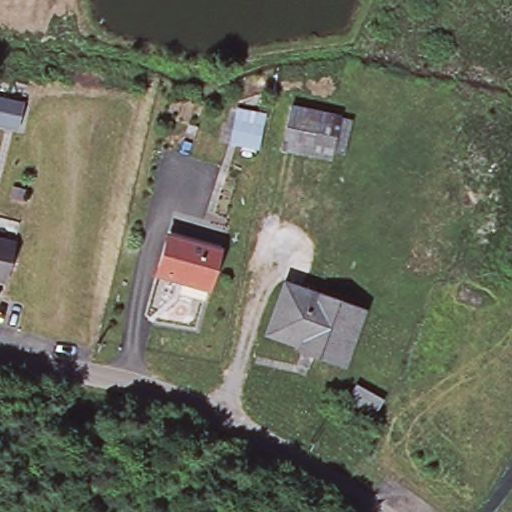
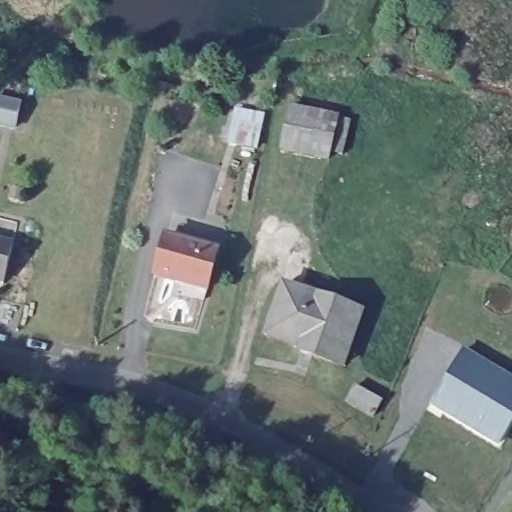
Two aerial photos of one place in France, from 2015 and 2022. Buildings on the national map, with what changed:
unchanged [(10,121),(0,118),(0,94),(16,99),(10,121)]
unchanged [(264,113),(257,145),(230,139),(238,107),(264,113)]
unchanged [(307,154),(286,149),(295,108),(325,115),(330,116),(342,119),(333,160),(310,155),(307,154)]
unchanged [(220,252),(210,290),(159,277),(168,237),(220,252)]
unchanged [(2,282),(0,282),(0,239),(12,242),(2,282)]
unchanged [(345,368),(335,363),(295,345),(296,341),(262,326),(285,279),(358,311),(368,316),(345,368)]
new [(512,377),(512,424),(500,443),(432,406),(463,349),(512,377)]
new [(383,399),(373,416),(347,402),(355,384),(383,399)]

